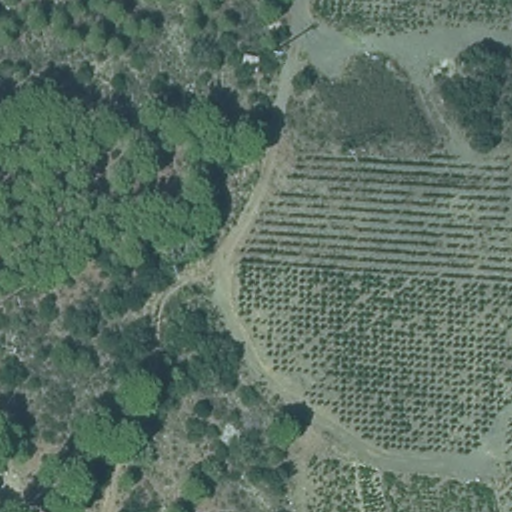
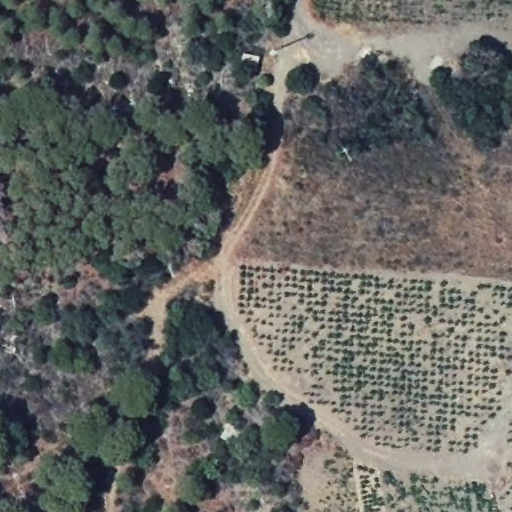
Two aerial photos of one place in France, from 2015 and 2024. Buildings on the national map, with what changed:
unchanged [(258,75),(241,71),(246,56),(262,57),(258,75)]

